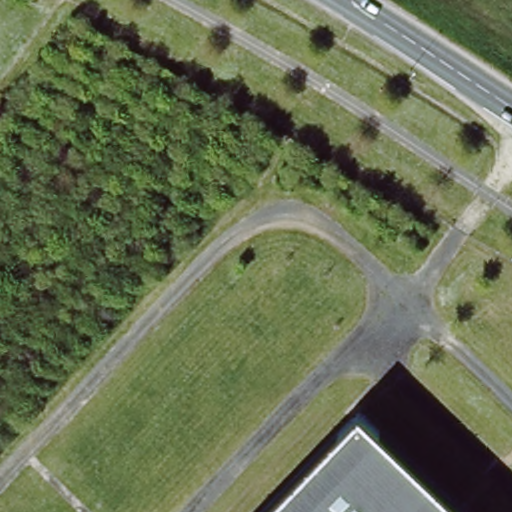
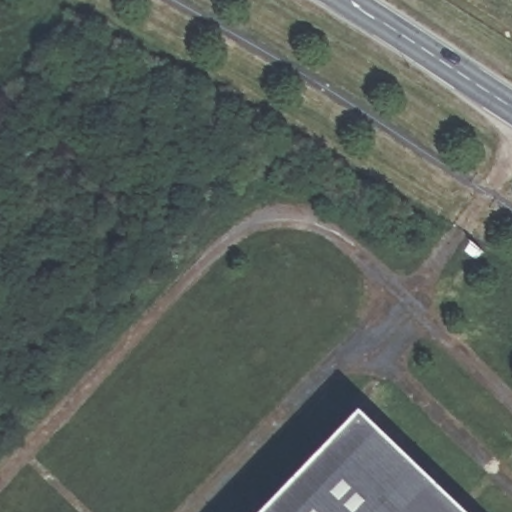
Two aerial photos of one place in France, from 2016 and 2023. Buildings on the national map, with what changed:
unchanged [(464,512),(270,512),(366,415),(464,512)]

